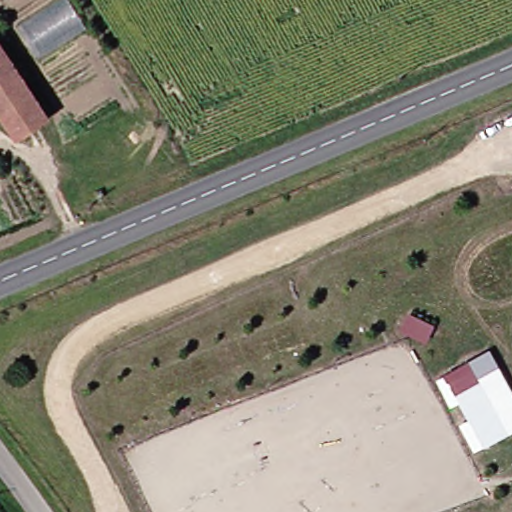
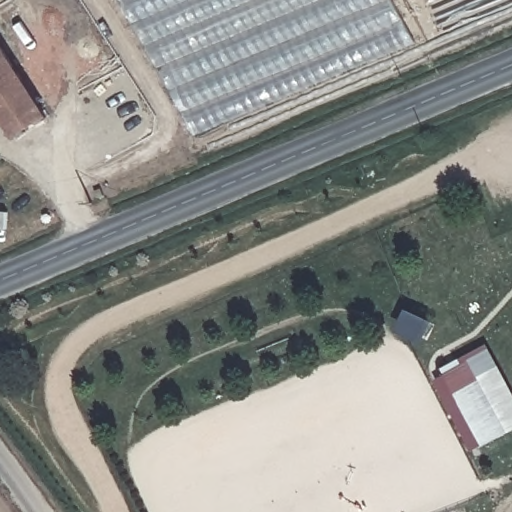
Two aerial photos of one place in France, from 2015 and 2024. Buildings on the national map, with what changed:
new [(195,136),(118,0),(395,0),(419,42),(195,136)]
unchanged [(52,112),(20,132),(0,100),(0,27),(52,112)]
new [(427,344),(399,333),(405,312),(435,324),(427,344)]
new [(460,424),(468,419),(460,401),(450,406),(436,379),(490,349),(512,392),(512,432),(474,452),(460,424)]

